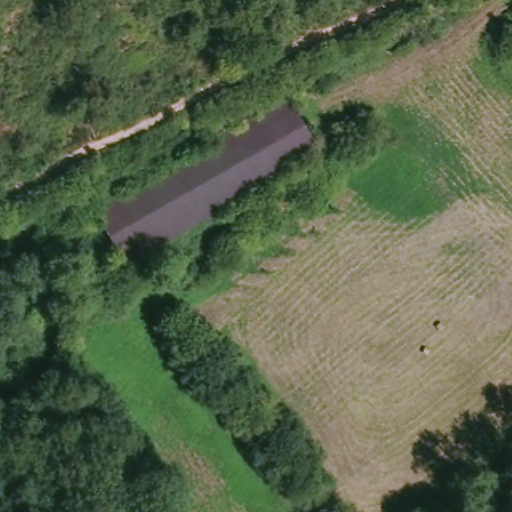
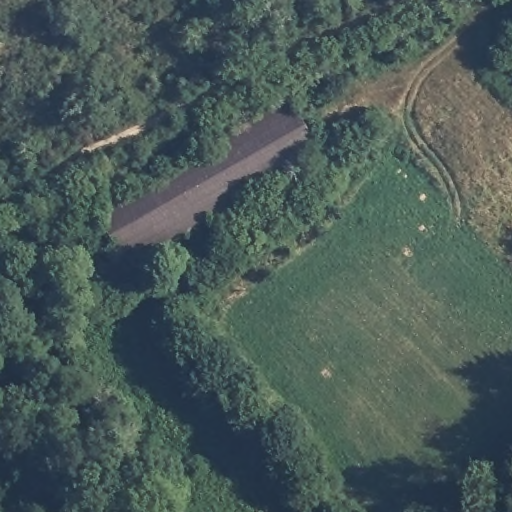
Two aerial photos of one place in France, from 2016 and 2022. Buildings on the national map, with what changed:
unchanged [(138,259),(106,204),(279,103),(312,156),(138,259)]

